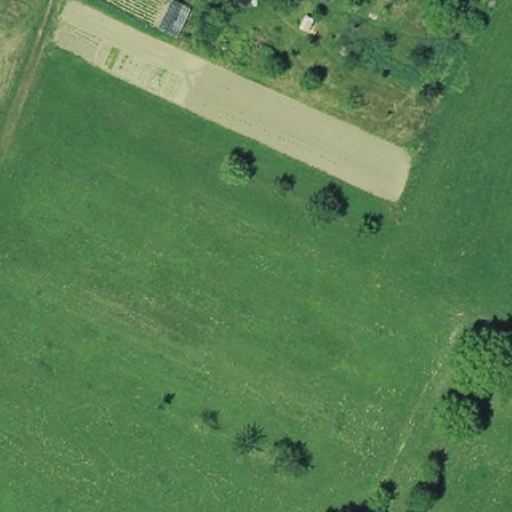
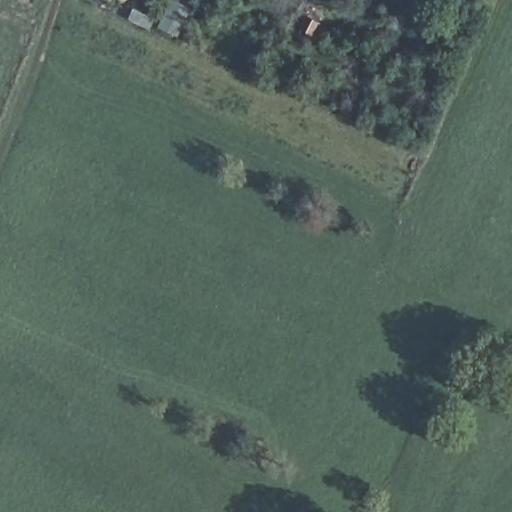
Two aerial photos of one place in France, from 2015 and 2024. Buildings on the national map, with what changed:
unchanged [(253,0),(251,4),(242,0),(253,0)]

